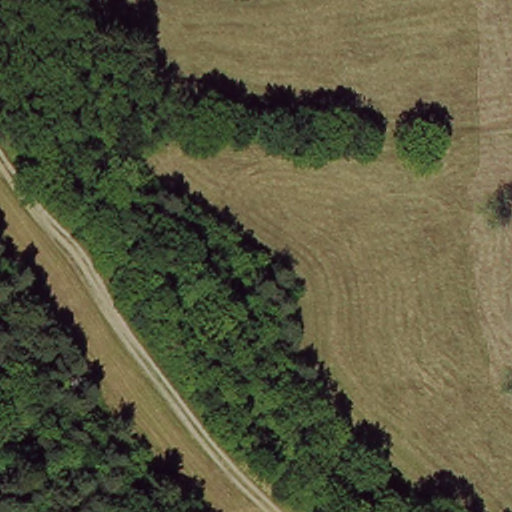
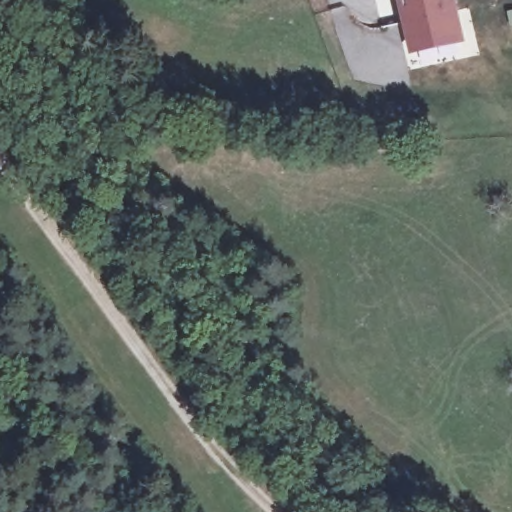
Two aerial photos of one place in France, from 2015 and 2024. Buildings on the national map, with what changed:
new [(410,56),(399,0),(457,0),(467,44),(410,56)]

